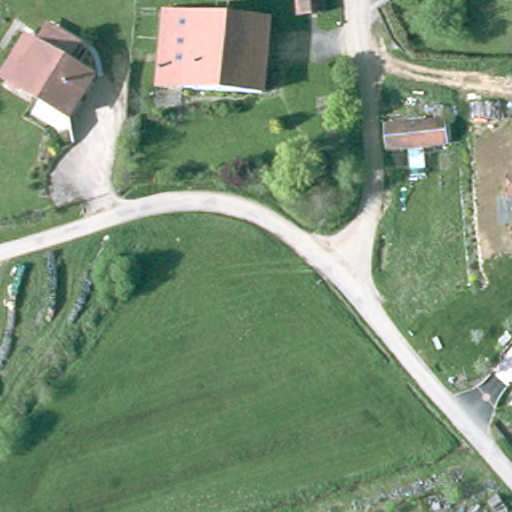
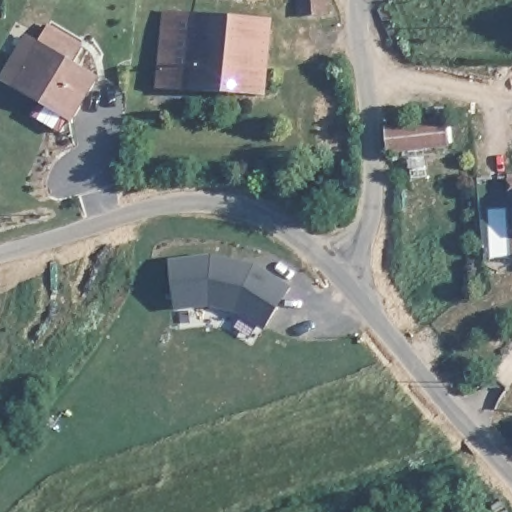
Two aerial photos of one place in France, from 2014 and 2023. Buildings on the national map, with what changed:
unchanged [(318,14),(298,16),(296,0),(318,0),(318,14)]
unchanged [(261,87),(158,84),(164,9),(191,10),(211,11),(231,13),(270,14),(261,87)]
unchanged [(44,23),(79,40),(70,58),(94,72),(68,114),(12,85),(35,40),(36,41),(44,23)]
unchanged [(390,150),(389,128),(446,120),(447,142),(390,150)]
unchanged [(509,195),(509,173),(512,173),(512,195),(509,195)]
new [(211,252),(256,262),(291,285),(265,328),(235,310),(209,304),(176,309),(169,257),(211,252)]

